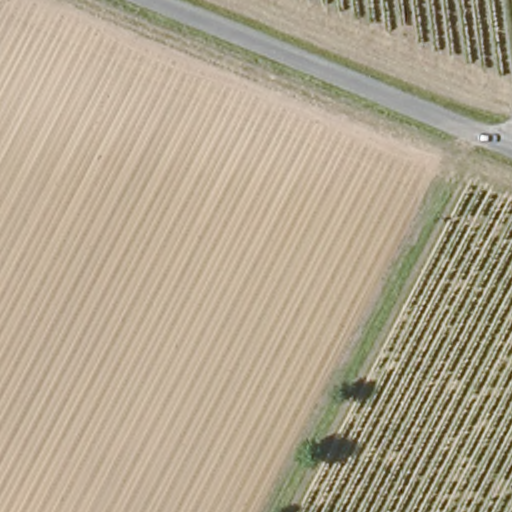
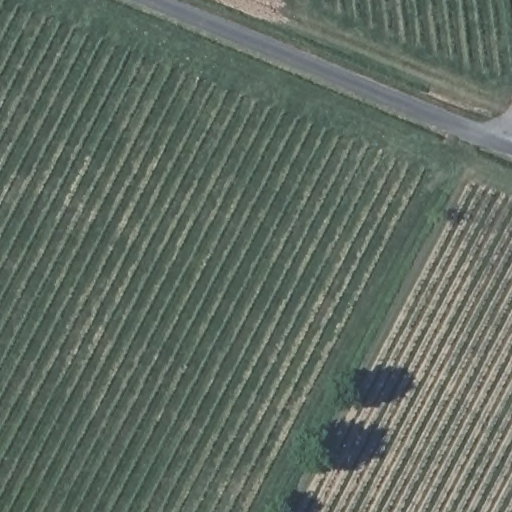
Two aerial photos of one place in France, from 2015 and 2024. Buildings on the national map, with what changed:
[]

